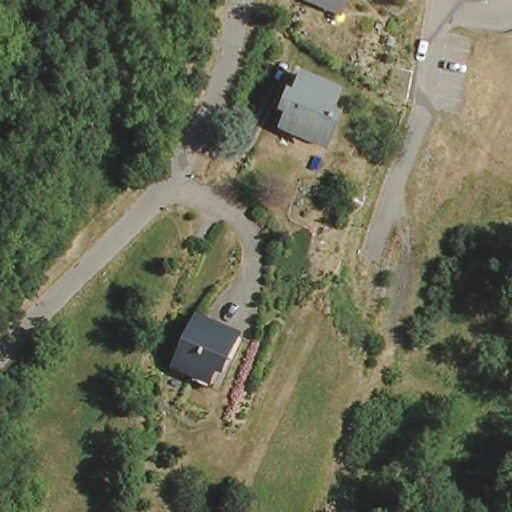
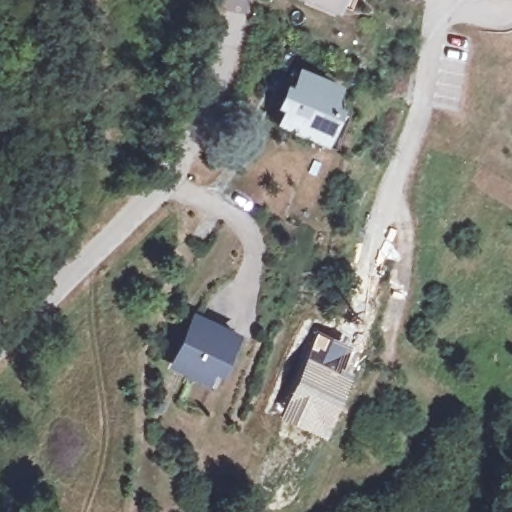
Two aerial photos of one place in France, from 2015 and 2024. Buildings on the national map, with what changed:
unchanged [(346,0),(343,7),(330,0),(327,6),(312,0),(346,0)]
unchanged [(276,111),(281,96),(287,99),(299,72),(330,85),(324,101),(332,105),(321,135),(284,120),(274,115),(276,111)]
unchanged [(201,378),(172,363),(197,316),(237,339),(227,357),(212,385),(201,378)]
new [(317,330),(354,346),(344,370),(306,355),(317,330)]
new [(306,355),(344,370),(352,373),(323,435),(279,415),(306,355)]

